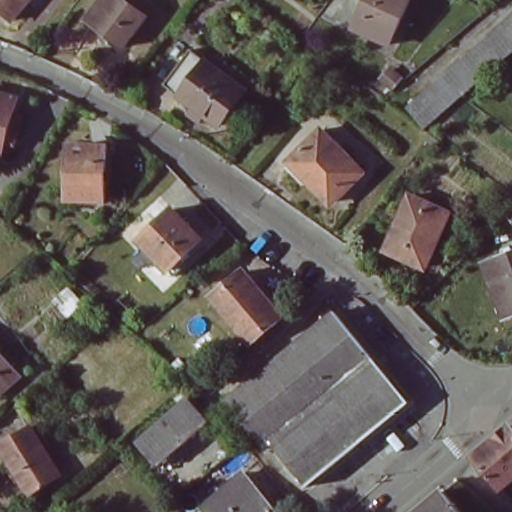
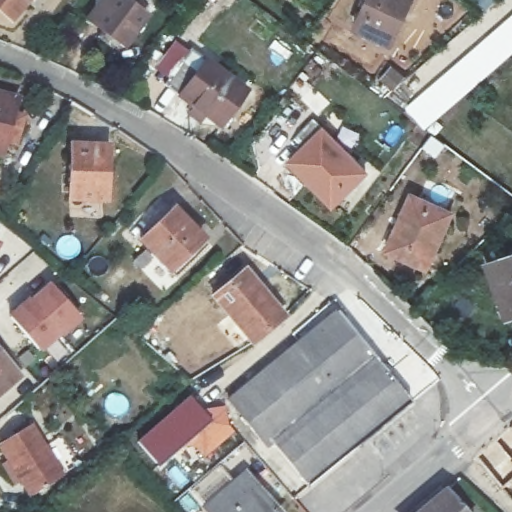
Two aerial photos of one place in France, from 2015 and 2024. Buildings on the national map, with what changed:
unchanged [(10,21),(0,12),(0,0),(29,0),(10,21)]
unchanged [(98,0),(130,0),(147,12),(123,44),(86,16),(98,0)]
unchanged [(392,38),(354,22),(364,0),(408,0),(392,38)]
unchanged [(404,106),(512,12),(512,48),(422,125),(404,106)]
unchanged [(193,49),(249,91),(222,125),(167,84),(193,49)]
unchanged [(390,65),(401,77),(390,85),(380,74),(390,65)]
unchanged [(12,146),(2,143),(0,148),(0,85),(19,91),(15,104),(24,106),(12,146)]
unchanged [(321,127),(363,172),(331,202),(289,158),(321,127)]
unchanged [(109,200),(70,197),(74,141),(112,145),(109,200)]
unchanged [(408,195),(450,212),(425,267),(384,250),(408,195)]
unchanged [(171,272),(139,240),(174,205),(206,238),(171,272)]
unchanged [(512,314),(508,315),(489,264),(512,255),(512,314)]
unchanged [(251,341),(214,293),(246,269),(283,317),(251,341)]
new [(28,296),(30,299),(49,284),(80,318),(41,352),(7,316),(28,296)]
unchanged [(235,430),(247,420),(231,400),(338,310),(412,402),(310,487),(295,498),(235,430)]
unchanged [(0,396),(0,350),(22,376),(0,396)]
unchanged [(174,381),(180,376),(187,383),(181,388),(174,381)]
unchanged [(158,466),(136,440),(190,395),(212,420),(158,466)]
unchanged [(469,456),(511,420),(512,422),(512,478),(498,490),(469,456)]
unchanged [(28,495),(0,448),(0,445),(32,425),(63,475),(28,495)]
unchanged [(242,473),(275,512),(206,512),(202,508),(242,473)]
unchanged [(416,512),(441,490),(461,512),(416,512)]

